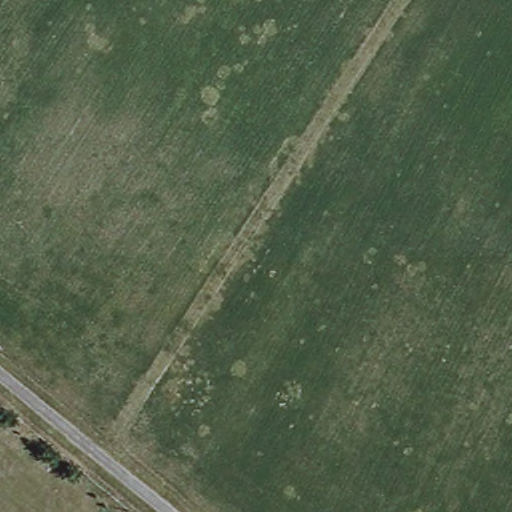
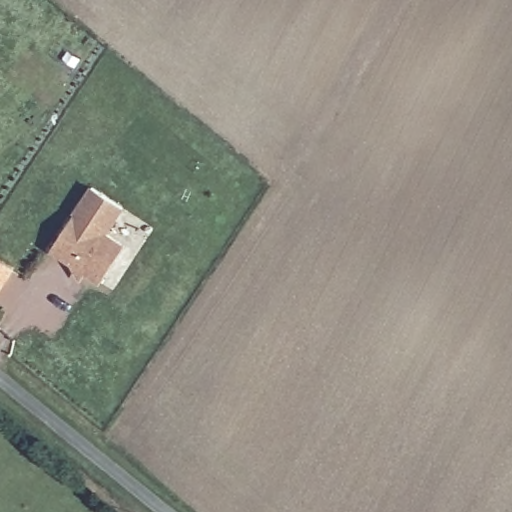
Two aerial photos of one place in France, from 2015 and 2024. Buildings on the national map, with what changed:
new [(125,209),(109,235),(125,246),(99,286),(85,277),(79,285),(74,267),(49,249),(90,187),(125,209)]

